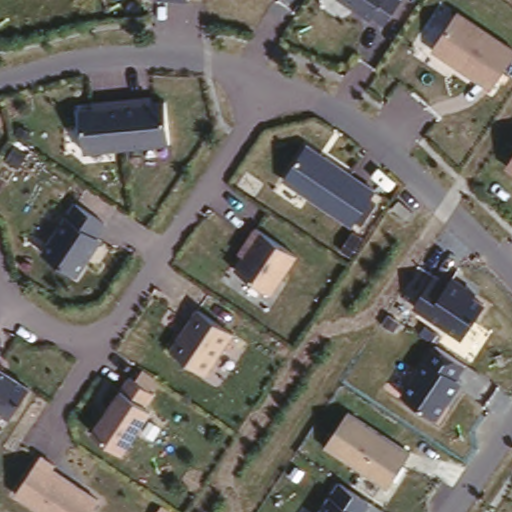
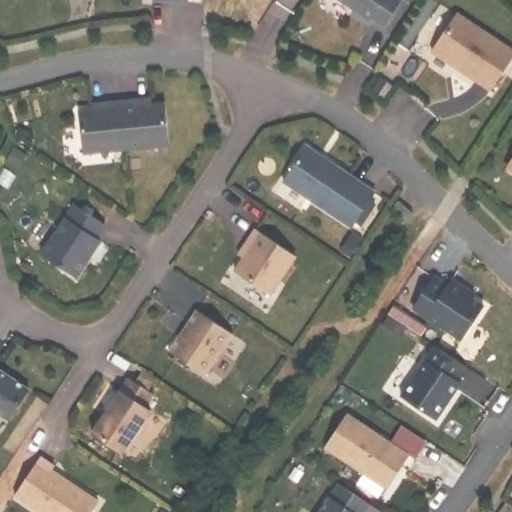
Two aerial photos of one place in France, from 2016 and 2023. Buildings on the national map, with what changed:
unchanged [(166,0),(188,0),(187,1),(166,0)]
unchanged [(373,17),(370,20),(340,0),(401,0),(385,24),(373,17)]
unchanged [(512,48),(512,59),(492,91),(430,54),(460,11),(512,48)]
unchanged [(166,101),(170,146),(85,151),(84,107),(166,101)]
unchanged [(312,145),(375,187),(350,227),(286,182),(312,145)]
unchanged [(512,172),(506,168),(512,159),(512,172)]
unchanged [(101,236),(102,237),(81,275),(49,256),(69,221),(79,210),(107,222),(101,236)]
unchanged [(298,257),(269,291),(235,263),(255,230),(298,257)]
unchanged [(412,307),(433,274),(448,284),(452,277),(476,293),(473,297),(486,307),(462,340),(412,307)]
unchanged [(169,350),(199,308),(234,333),(205,375),(169,350)]
unchanged [(467,363),(457,379),(462,383),(440,421),(398,395),(435,339),(467,363)]
unchanged [(27,385),(6,420),(0,415),(0,367),(27,385)]
unchanged [(120,390),(129,378),(135,382),(144,369),(157,378),(150,390),(155,394),(145,407),(151,412),(123,454),(90,434),(120,390)]
unchanged [(350,411),(411,452),(388,488),(325,447),(350,411)]
unchanged [(15,495),(43,456),(57,465),(54,470),(98,500),(90,512),(39,512),(15,495)]
unchanged [(372,502),(366,512),(317,512),(339,477),(372,502)]

